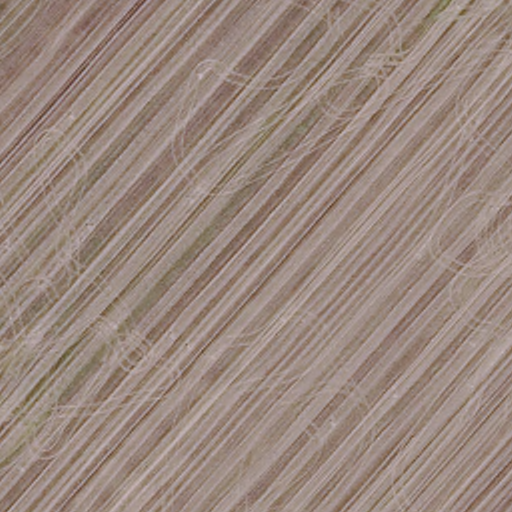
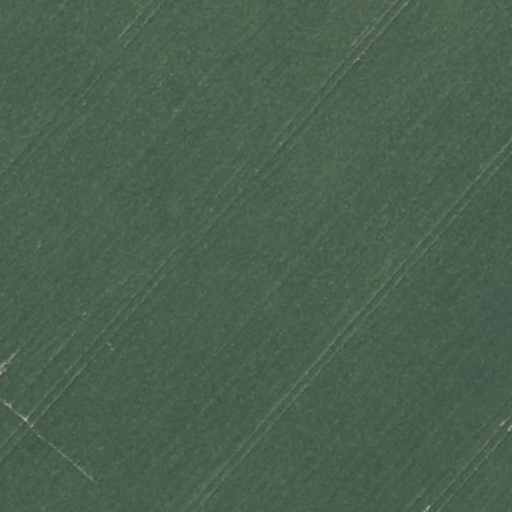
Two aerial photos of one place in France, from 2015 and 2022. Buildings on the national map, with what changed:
[]

